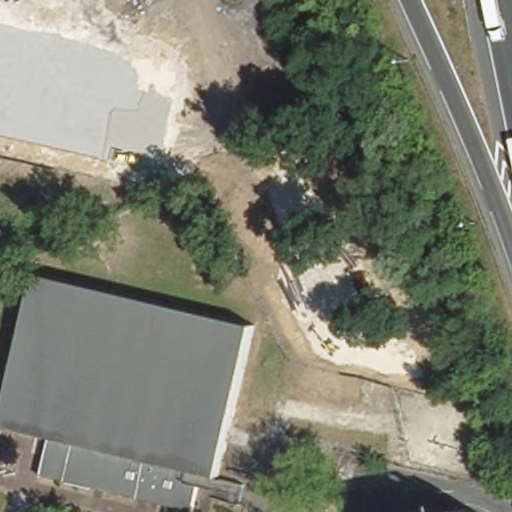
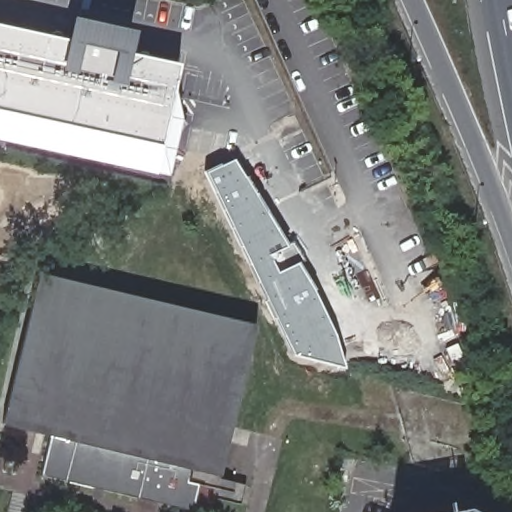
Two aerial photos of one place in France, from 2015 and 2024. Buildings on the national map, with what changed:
new [(180,116),(167,178),(0,141),(0,24),(67,39),(72,17),(134,31),(129,53),(179,64),(172,90),(180,116)]
new [(292,355),(204,172),(234,159),(286,245),(292,243),(304,260),(299,263),(314,289),(335,335),(345,368),(292,355)]
unchanged [(259,323),(225,478),(247,483),(242,504),(220,499),(224,485),(207,482),(201,512),(187,512),(47,480),(56,439),(9,429),(43,274),(259,323)]
unchanged [(478,508),(485,512),(452,512),(478,508)]

